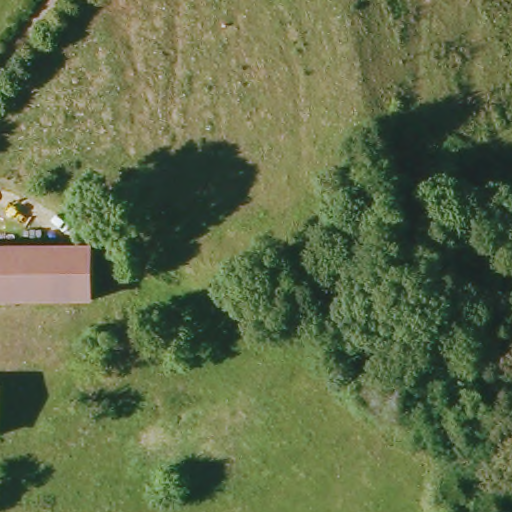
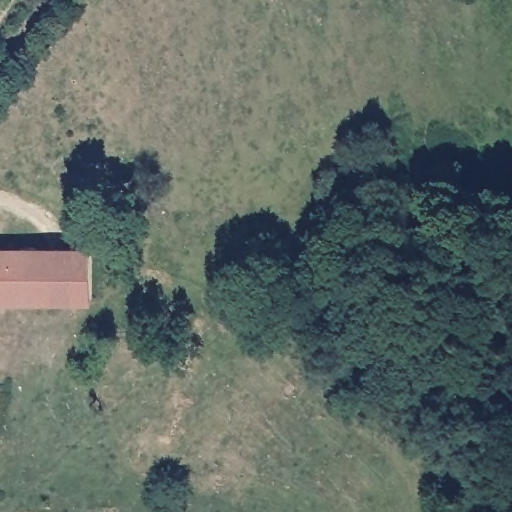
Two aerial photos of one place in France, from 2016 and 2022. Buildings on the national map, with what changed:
unchanged [(0,298),(0,248),(90,249),(90,297),(0,298)]
unchanged [(2,381),(1,432),(0,432),(0,381),(2,381)]

